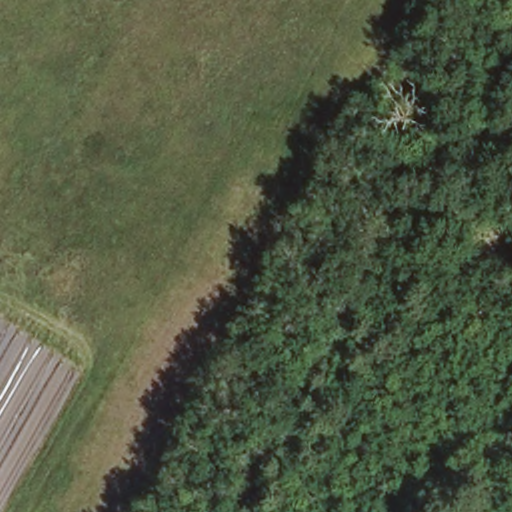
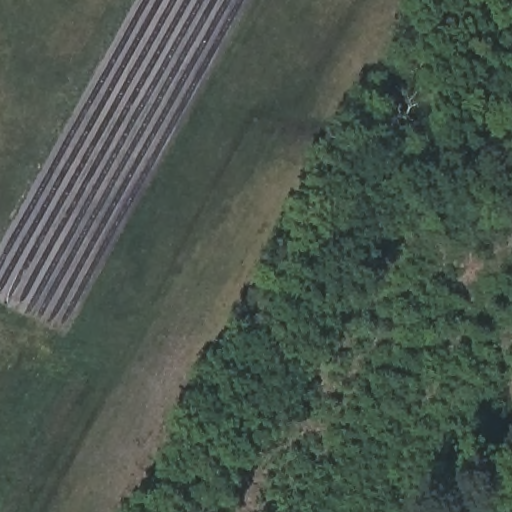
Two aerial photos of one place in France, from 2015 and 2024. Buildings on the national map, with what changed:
[]

